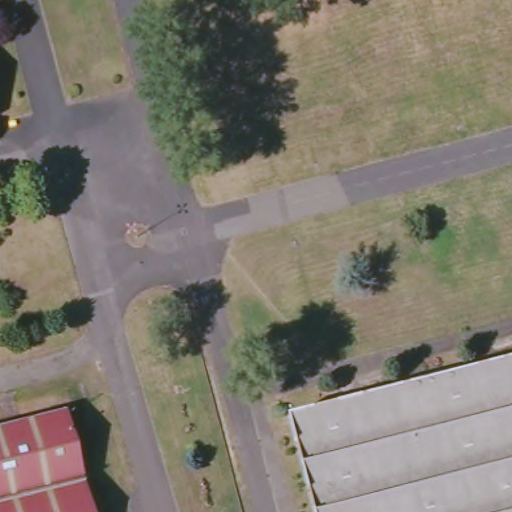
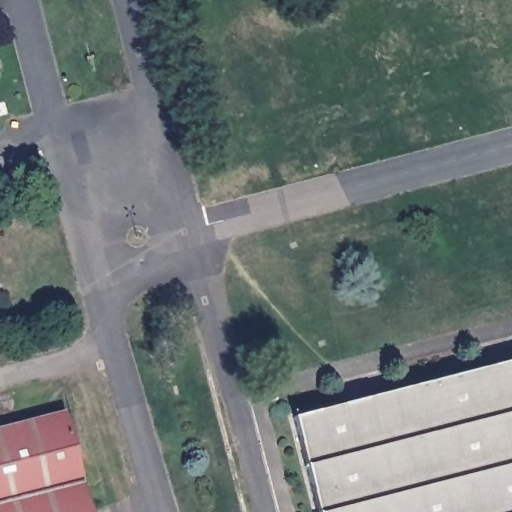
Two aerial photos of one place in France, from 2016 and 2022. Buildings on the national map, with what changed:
unchanged [(512,369),(512,512),(318,512),(295,426),(512,369)]
unchanged [(86,512),(0,512),(0,431),(60,415),(86,512)]

